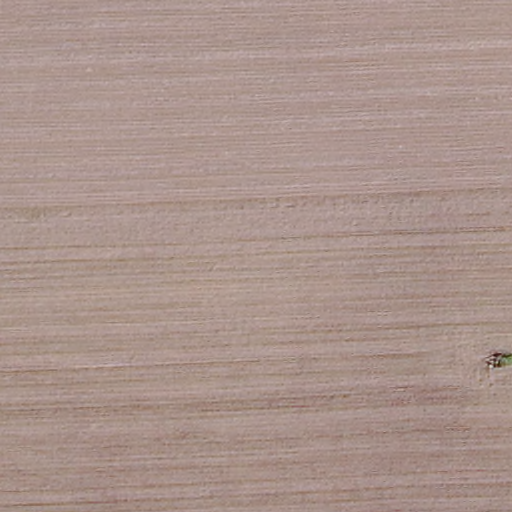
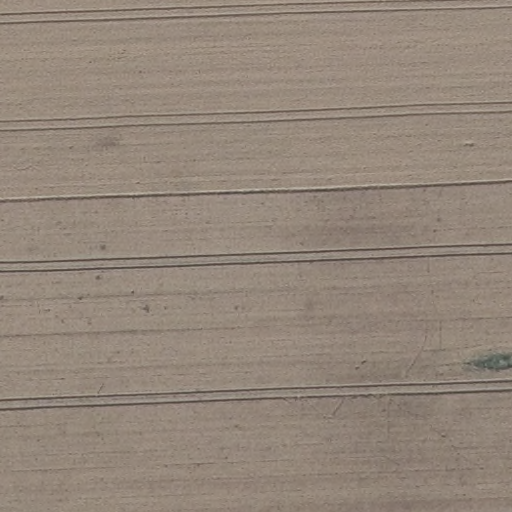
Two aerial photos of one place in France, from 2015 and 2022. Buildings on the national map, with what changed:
[]

